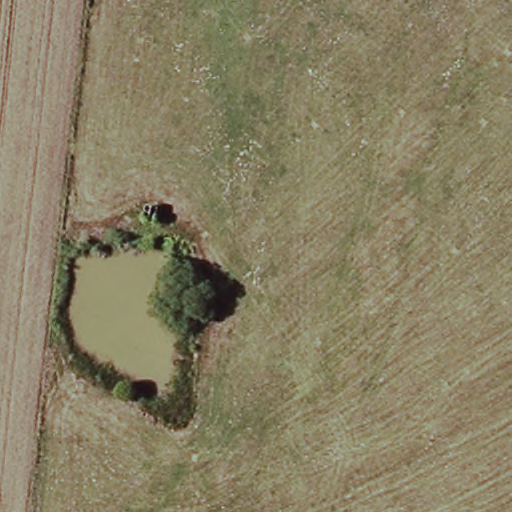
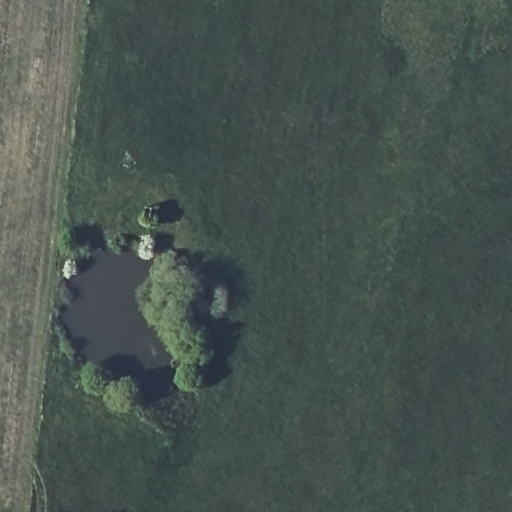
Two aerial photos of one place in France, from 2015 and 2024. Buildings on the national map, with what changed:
unchanged [(145,221),(149,206),(162,210),(158,223),(145,221)]

